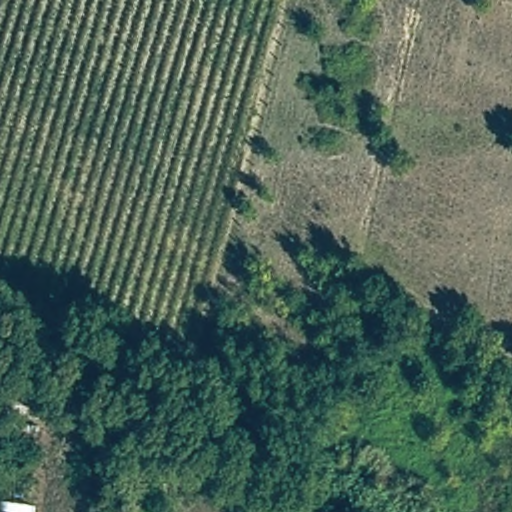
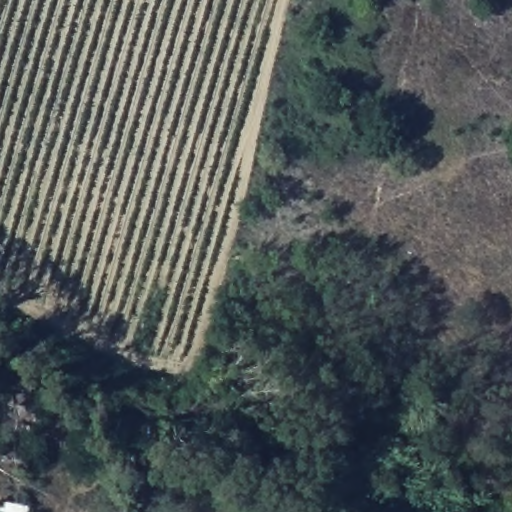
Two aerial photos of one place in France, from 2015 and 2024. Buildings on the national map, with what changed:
unchanged [(1,512),(2,502),(36,507),(35,512),(1,512)]

